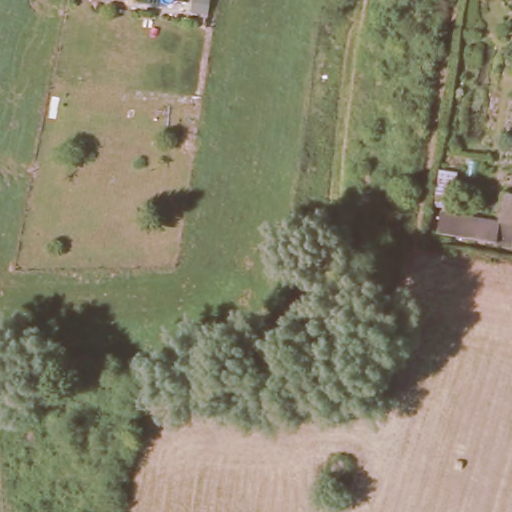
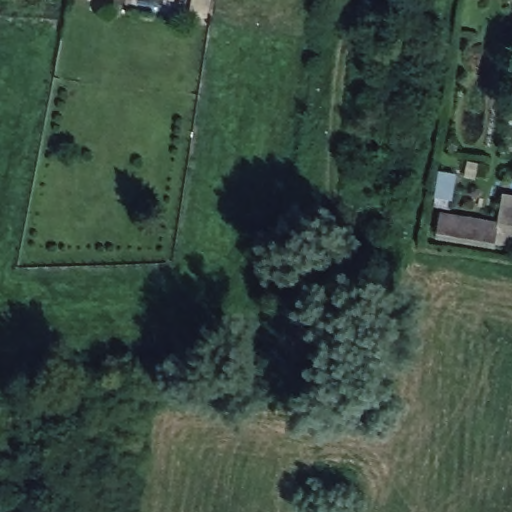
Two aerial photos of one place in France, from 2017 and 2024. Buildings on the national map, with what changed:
unchanged [(428,240),(429,167),(452,169),(450,210),(512,210),(512,219),(509,249),(428,240)]

